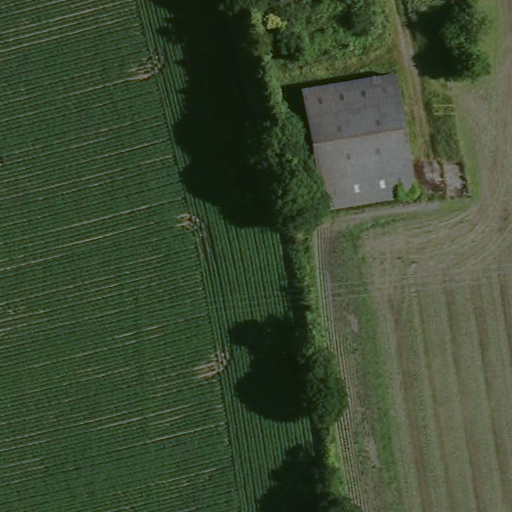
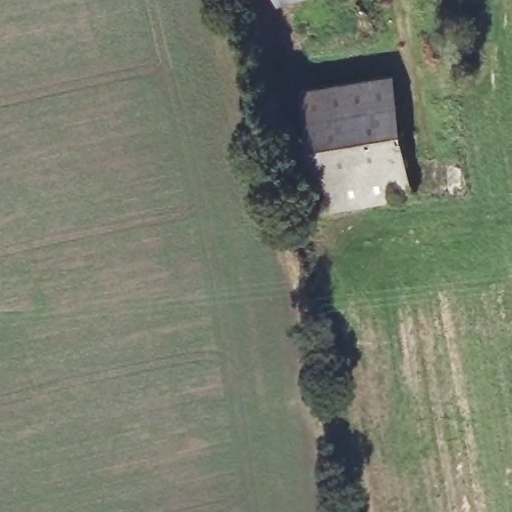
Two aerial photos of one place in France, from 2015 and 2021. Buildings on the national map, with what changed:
unchanged [(392,73),(413,191),(322,207),(301,89),(392,73)]

